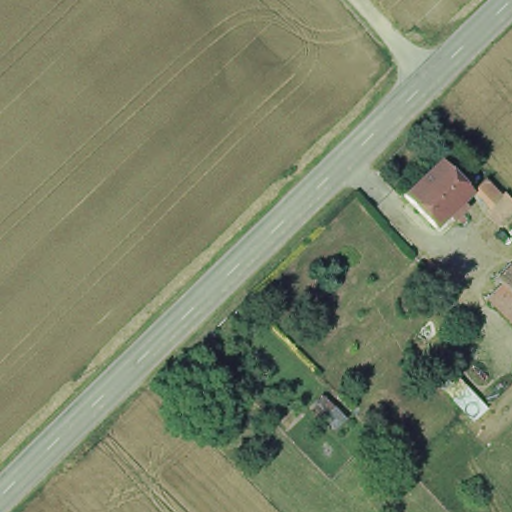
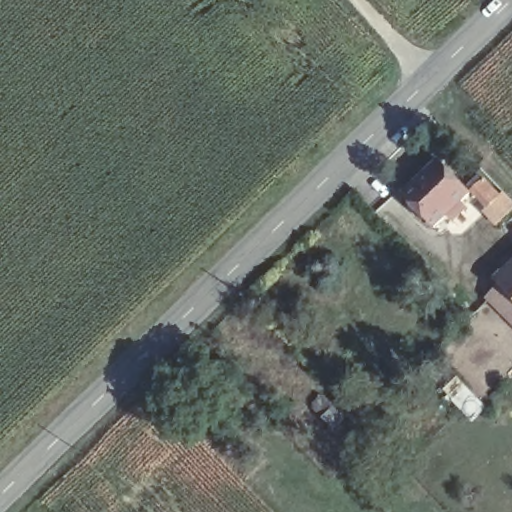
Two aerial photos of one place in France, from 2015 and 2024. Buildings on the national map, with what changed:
unchanged [(445,225),(438,218),(425,229),(393,195),(430,160),(462,194),(453,203),(460,211),(445,225)]
unchanged [(505,206),(488,223),(477,211),(482,205),(465,188),(473,179),(491,198),(494,195),(505,206)]
unchanged [(480,292),(485,288),(512,261),(512,325),(480,292)]

